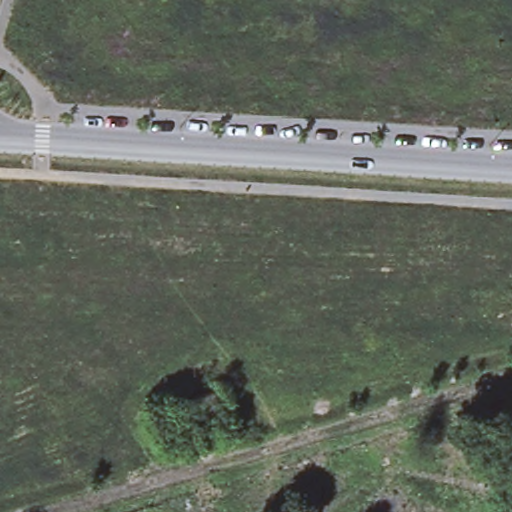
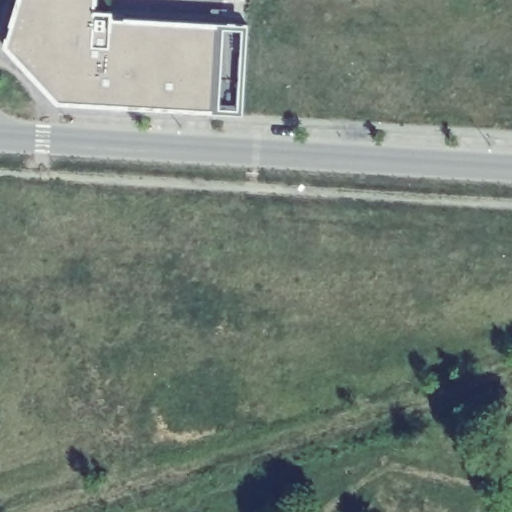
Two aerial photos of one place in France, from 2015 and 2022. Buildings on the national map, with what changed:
new [(6,44),(19,0),(96,0),(95,9),(112,10),(112,18),(248,26),(241,112),(58,103),(6,44)]
unchanged [(217,389),(226,428),(182,435),(173,402),(217,389)]

